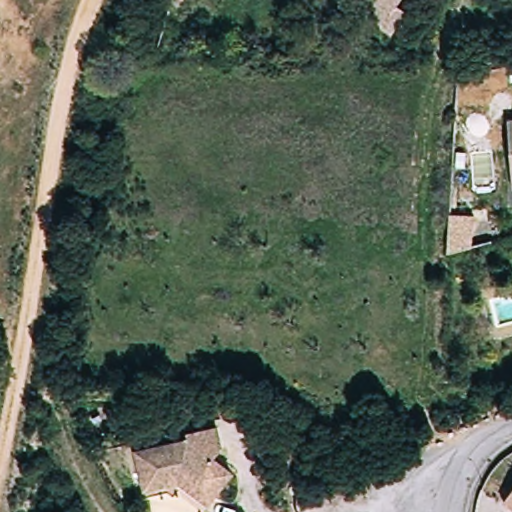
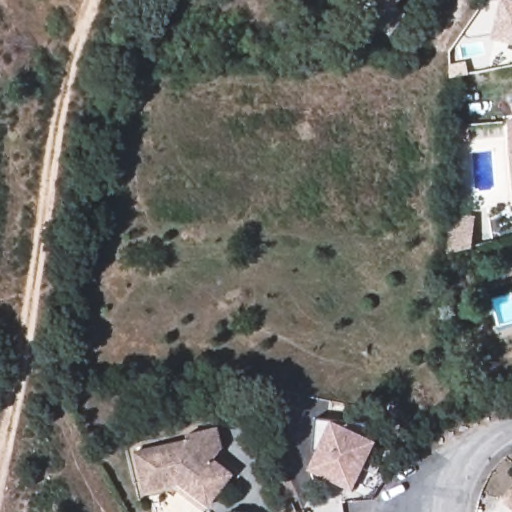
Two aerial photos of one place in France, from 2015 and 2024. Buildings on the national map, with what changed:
unchanged [(378,7),(367,0),(407,0),(398,12),(408,19),(394,37),(368,19),(378,7)]
new [(512,1),(512,40),(497,36),(505,0),(512,1)]
new [(354,492),(309,469),(333,421),(377,441),(354,492)]
unchanged [(181,480),(147,486),(139,447),(192,436),(191,431),(221,425),(226,446),(217,457),(236,471),(217,495),(211,503),(181,480)]
unchanged [(512,492),(512,506),(505,501),(512,492)]

